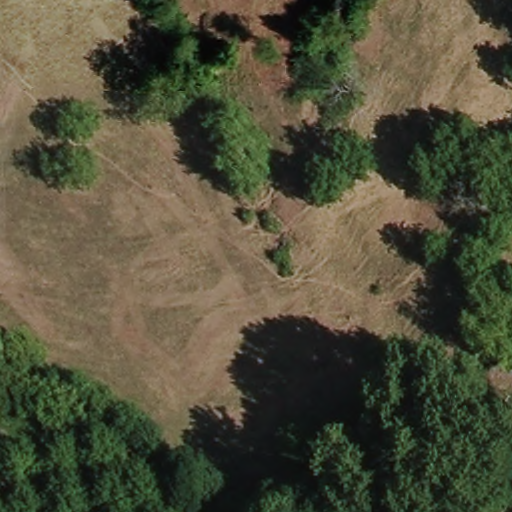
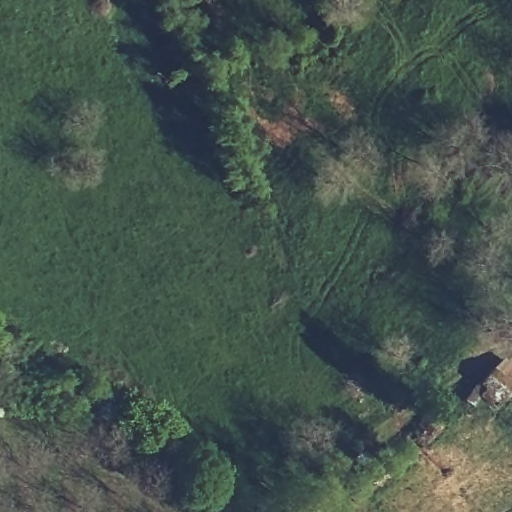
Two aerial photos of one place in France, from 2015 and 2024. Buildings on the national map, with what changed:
unchanged [(477,397),(484,391),(478,383),(484,376),(493,368),(502,360),(512,369),(512,391),(502,405),(499,403),(493,412),(477,397)]

